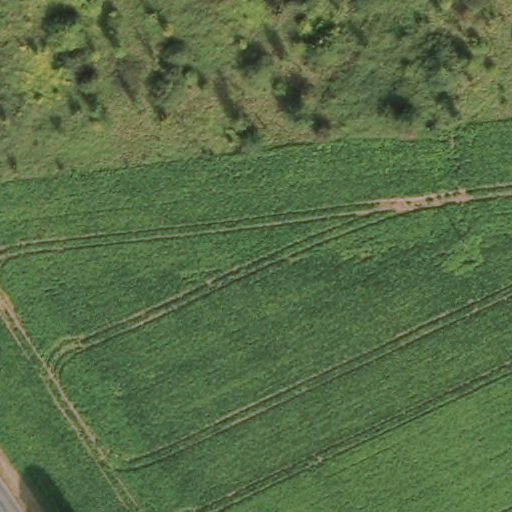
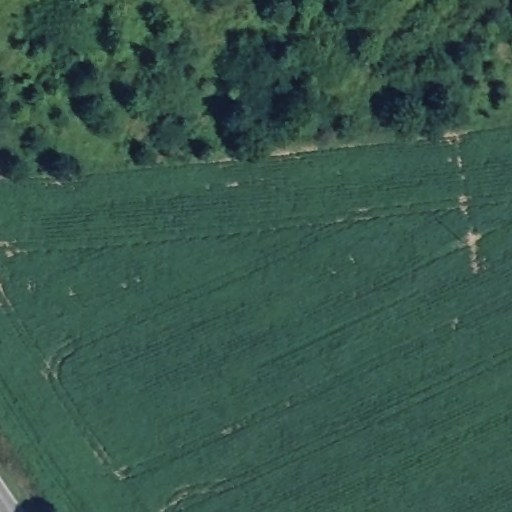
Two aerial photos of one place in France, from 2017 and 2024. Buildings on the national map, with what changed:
[]

